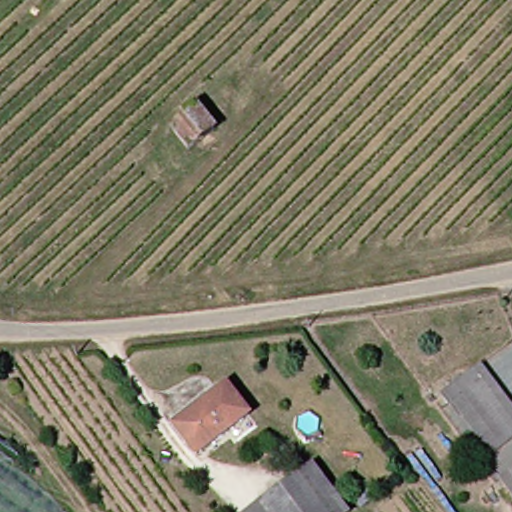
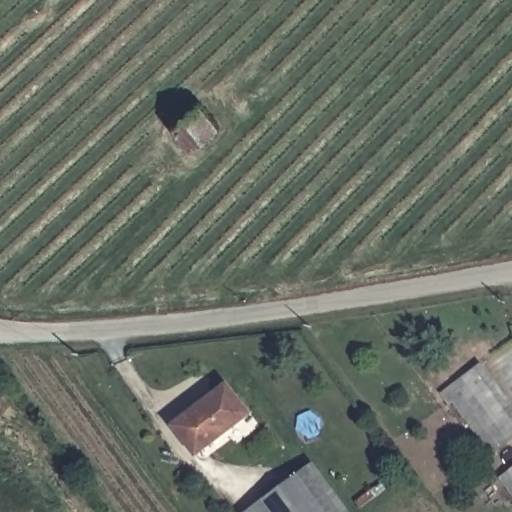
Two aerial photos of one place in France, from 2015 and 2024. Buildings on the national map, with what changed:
unchanged [(159,128),(185,107),(202,129),(177,150),(159,128)]
unchanged [(445,415),(434,400),(475,370),(512,419),(512,436),(483,458),(448,413),(445,415)]
unchanged [(167,430),(221,389),(242,417),(190,459),(167,430)]
unchanged [(512,468),(512,506),(493,482),(512,468)]
unchanged [(302,473),(333,512),(278,512),(268,500),(302,473)]
unchanged [(251,512),(268,500),(278,512),(251,512)]

